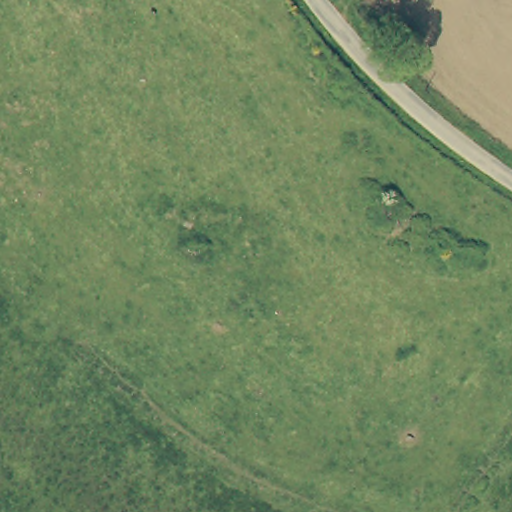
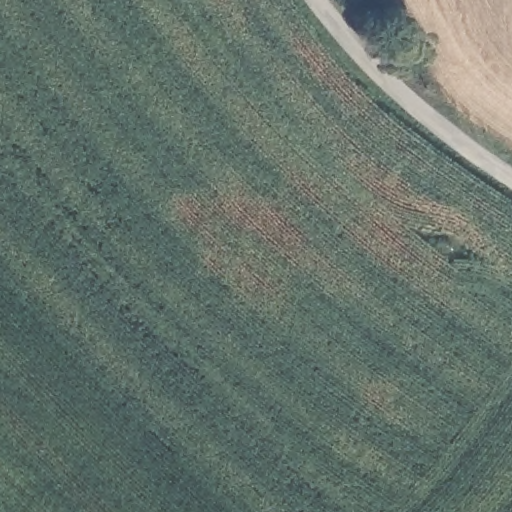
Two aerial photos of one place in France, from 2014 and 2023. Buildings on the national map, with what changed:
[]

